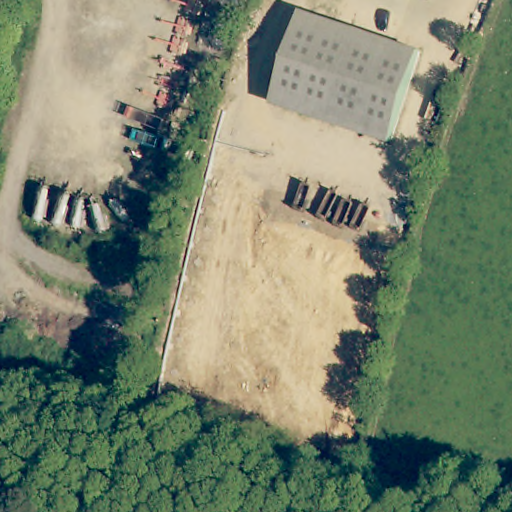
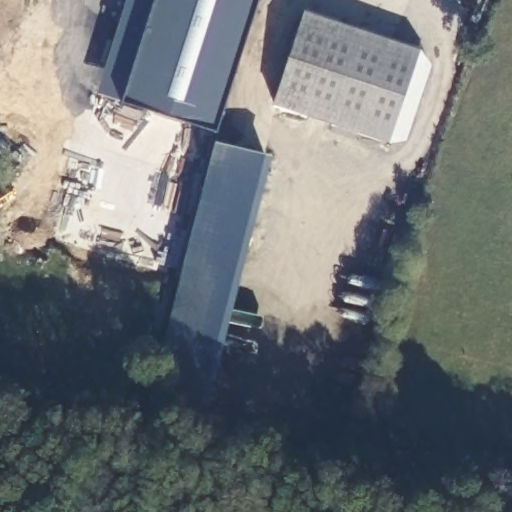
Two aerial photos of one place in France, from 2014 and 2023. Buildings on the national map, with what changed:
new [(121,100),(98,92),(125,0),(257,0),(217,130),(121,100)]
unchanged [(425,53),(391,144),(271,100),(306,9),(425,53)]
new [(204,420),(145,405),(215,141),(274,156),(204,420)]

